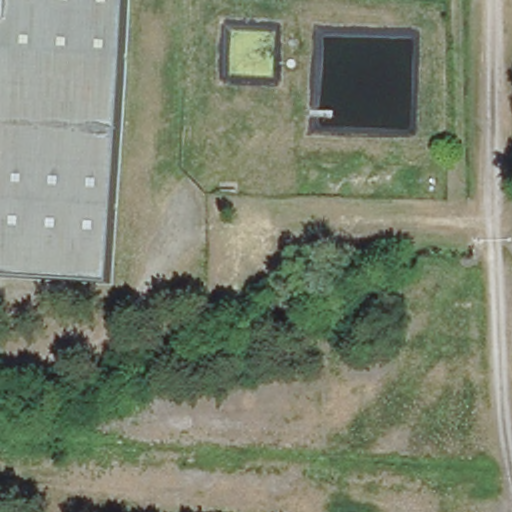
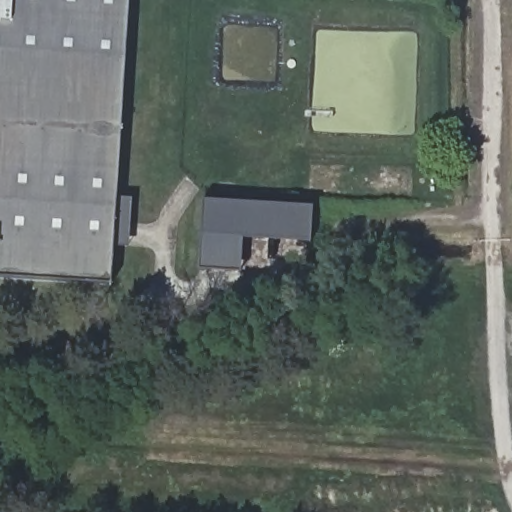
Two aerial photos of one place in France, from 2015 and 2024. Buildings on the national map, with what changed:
unchanged [(124,0),(107,280),(0,274),(0,0),(124,0)]
new [(310,242),(243,238),(241,270),(200,268),(204,201),(312,207),(310,242)]

